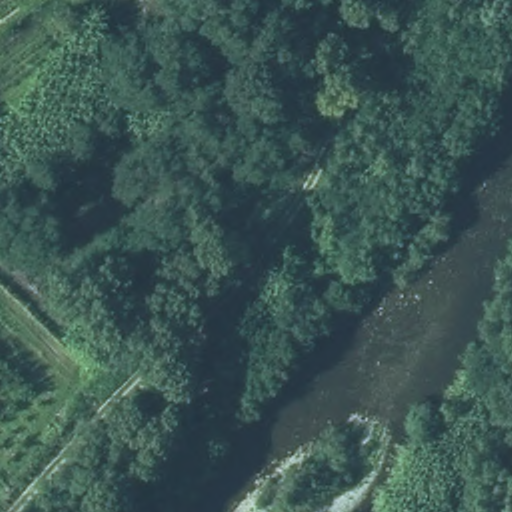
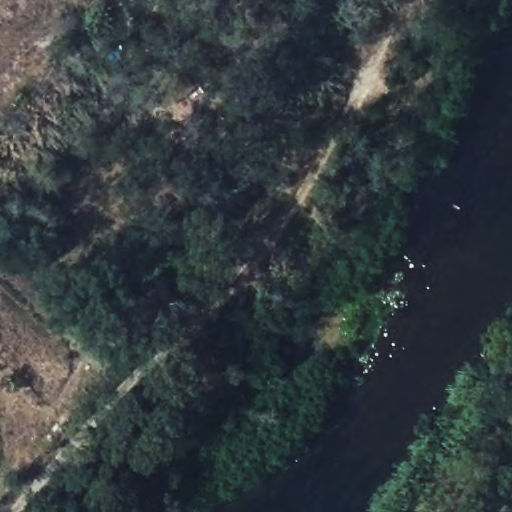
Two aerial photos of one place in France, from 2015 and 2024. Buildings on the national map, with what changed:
[]

